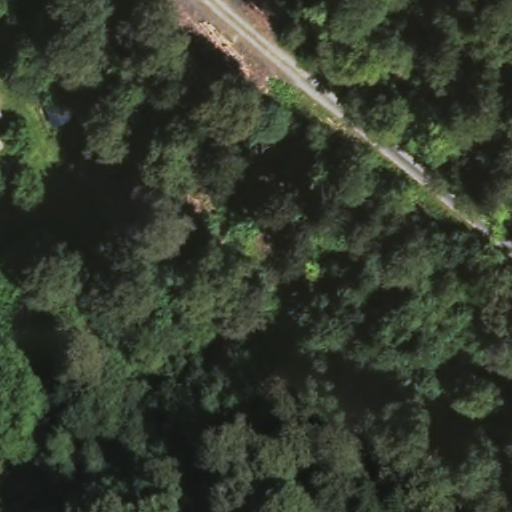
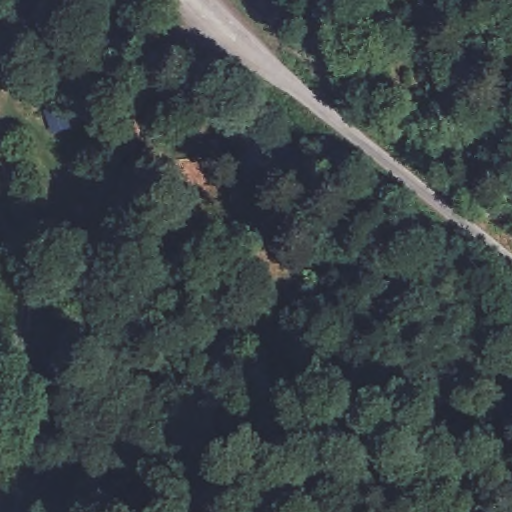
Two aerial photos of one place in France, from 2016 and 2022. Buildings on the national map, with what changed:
unchanged [(64,0),(74,16),(35,32),(21,0),(64,0)]

